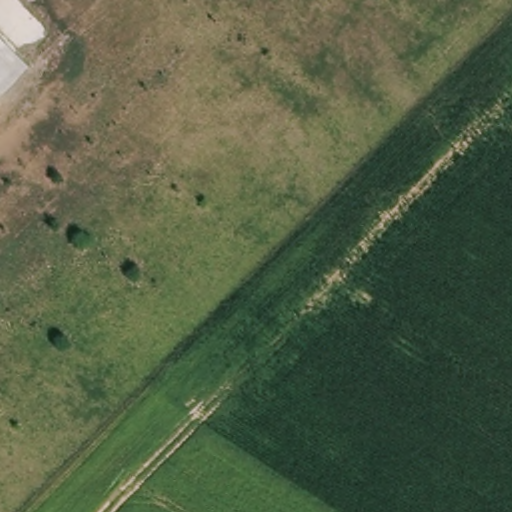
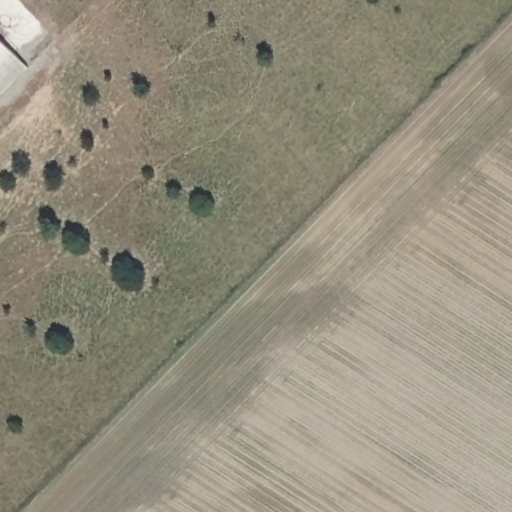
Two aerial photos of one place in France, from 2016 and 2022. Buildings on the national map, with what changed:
unchanged [(29,67),(0,95),(0,37),(29,67)]

